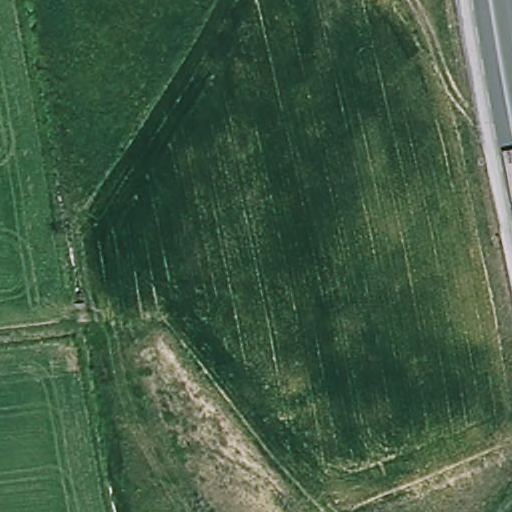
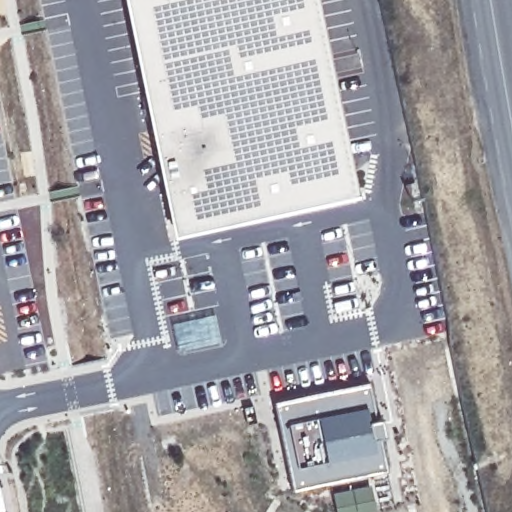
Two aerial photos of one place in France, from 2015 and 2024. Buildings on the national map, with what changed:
new [(359,195),(173,234),(125,0),(319,0),(359,195)]
new [(368,381),(375,417),(380,416),(384,433),(375,435),(384,468),(291,487),(274,400),(368,381)]

